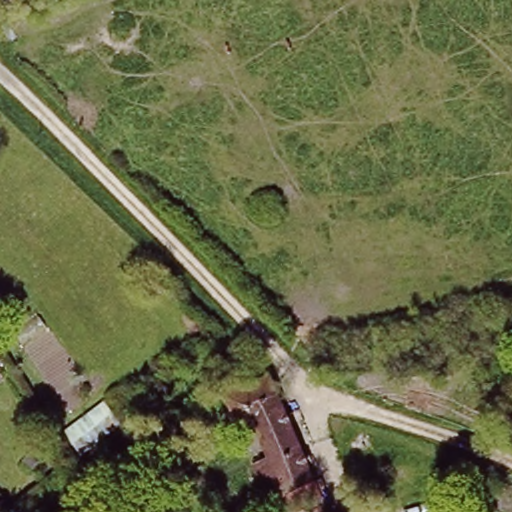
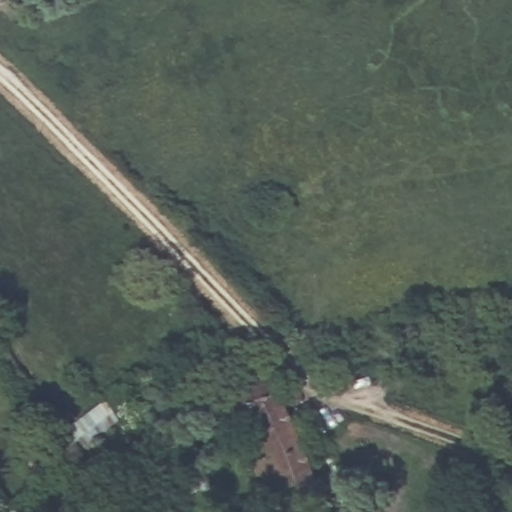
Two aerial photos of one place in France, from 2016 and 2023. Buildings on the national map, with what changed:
unchanged [(271,373),(313,475),(260,496),(245,459),(264,453),(253,428),(239,433),(222,397),(271,373)]

